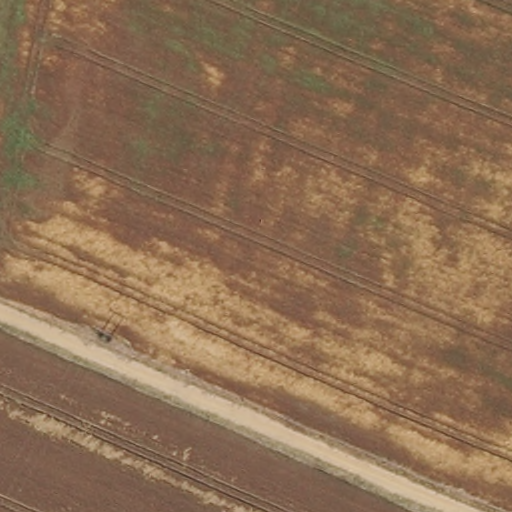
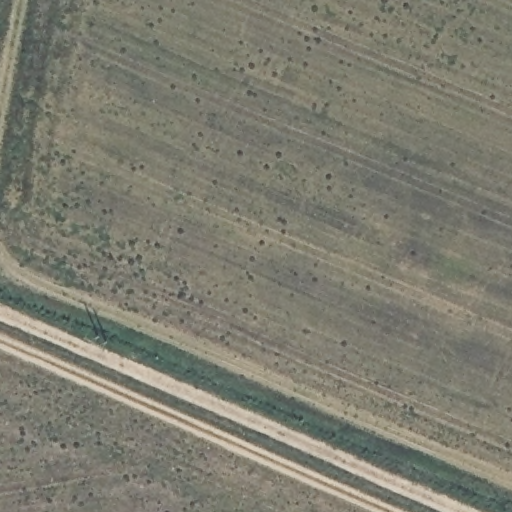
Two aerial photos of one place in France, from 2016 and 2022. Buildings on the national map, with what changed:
[]

